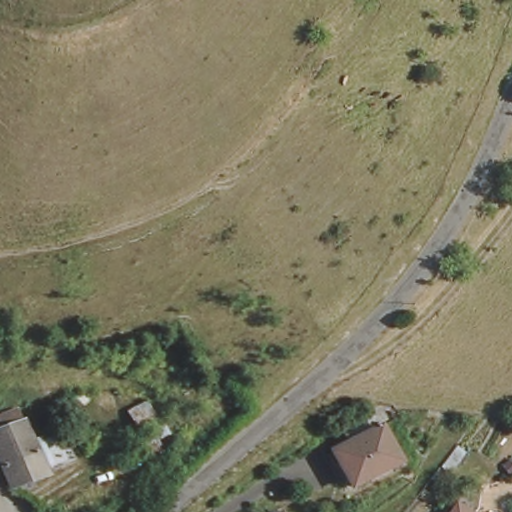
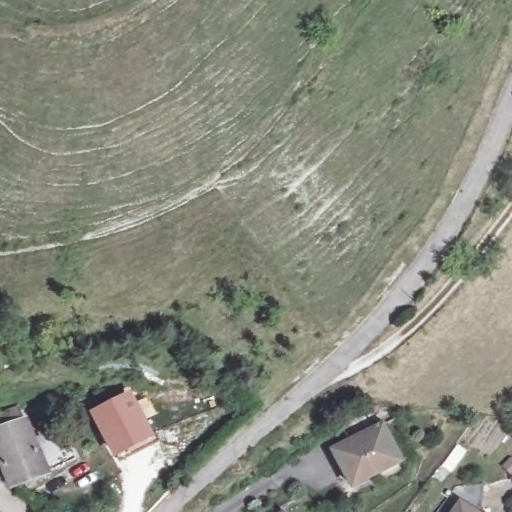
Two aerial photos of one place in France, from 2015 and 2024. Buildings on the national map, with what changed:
new [(130,389),(137,402),(147,397),(155,414),(146,419),(155,437),(113,458),(88,411),(130,389)]
unchanged [(67,432),(80,458),(17,489),(0,453),(0,422),(19,412),(25,427),(35,447),(67,432)]
unchanged [(378,415),(386,431),(373,437),(393,472),(350,495),(333,463),(350,454),(340,435),(378,415)]
unchanged [(465,449),(450,468),(442,462),(458,443),(465,449)]
unchanged [(458,492),(487,489),(478,512),(443,512),(458,492)]
unchanged [(277,505),(283,512),(265,512),(277,505)]

